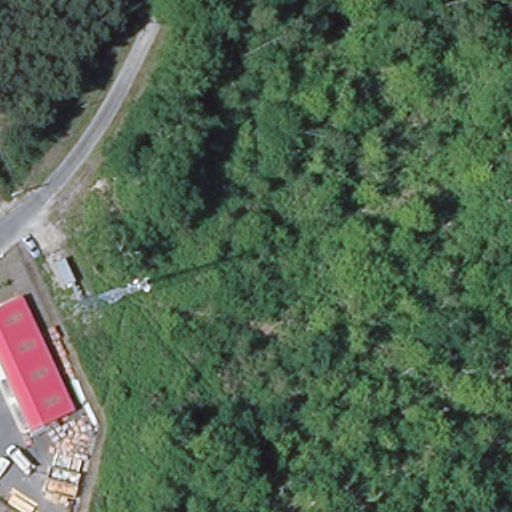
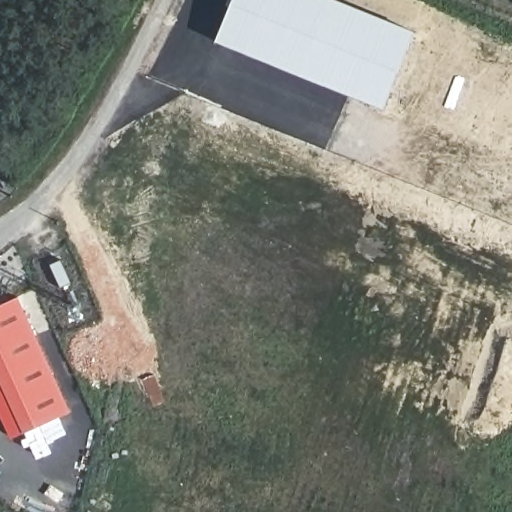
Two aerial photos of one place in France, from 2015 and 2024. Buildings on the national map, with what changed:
new [(383,109),(216,42),(233,0),(337,0),(415,31),(383,109)]
unchanged [(27,433),(0,374),(0,307),(18,299),(70,412),(27,433)]

